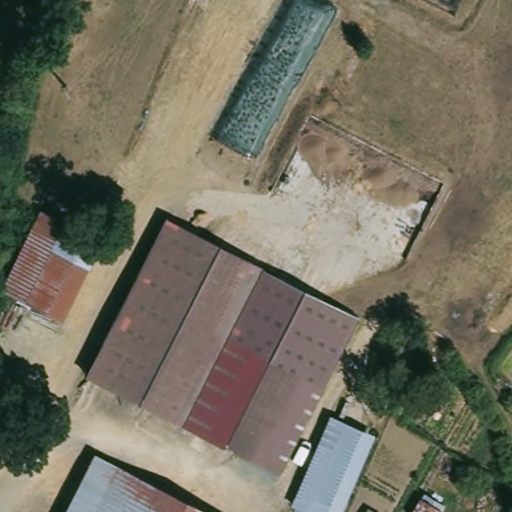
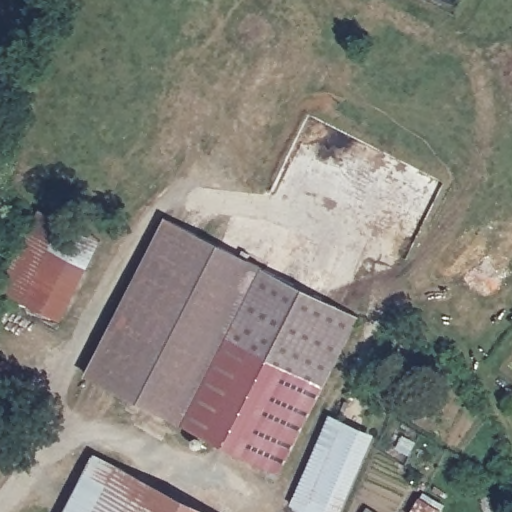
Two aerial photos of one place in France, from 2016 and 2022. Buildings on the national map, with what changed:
unchanged [(105,252),(65,326),(6,293),(46,220),(105,252)]
unchanged [(171,229),(354,317),(347,331),(267,294),(165,243),(171,229)]
unchanged [(267,294),(201,438),(95,387),(165,243),(267,294)]
unchanged [(347,331),(278,475),(201,438),(267,294),(347,331)]
unchanged [(352,429),(319,505),(316,512),(303,512),(300,511),(306,496),(338,423),(352,429)]
unchanged [(369,436),(335,512),(316,512),(319,505),(352,429),(369,436)]
unchanged [(66,512),(95,456),(207,512),(66,512)]
unchanged [(442,512),(413,512),(420,499),(443,511),(442,512)]

